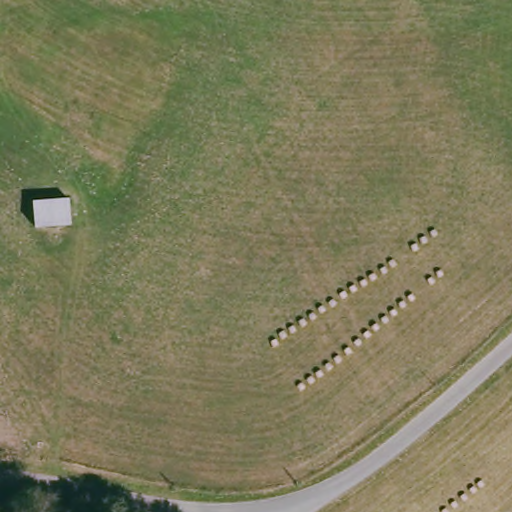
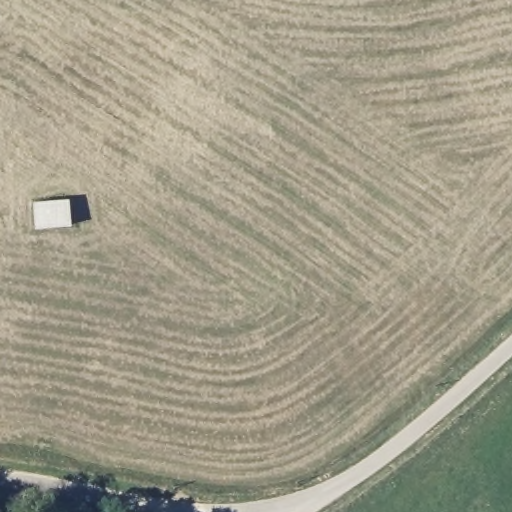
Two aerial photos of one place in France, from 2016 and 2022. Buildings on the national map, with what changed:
unchanged [(73,225),(35,225),(35,201),(73,201),(73,225)]

